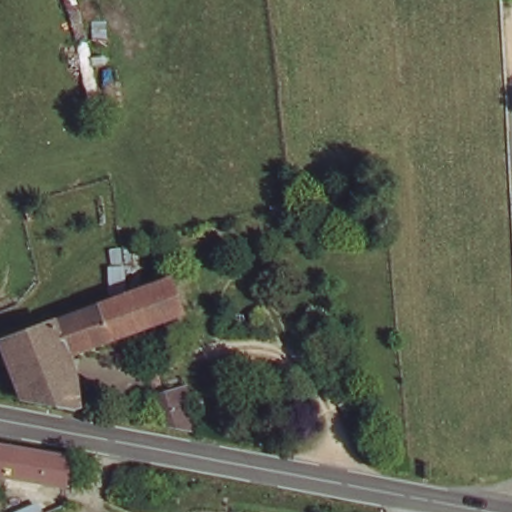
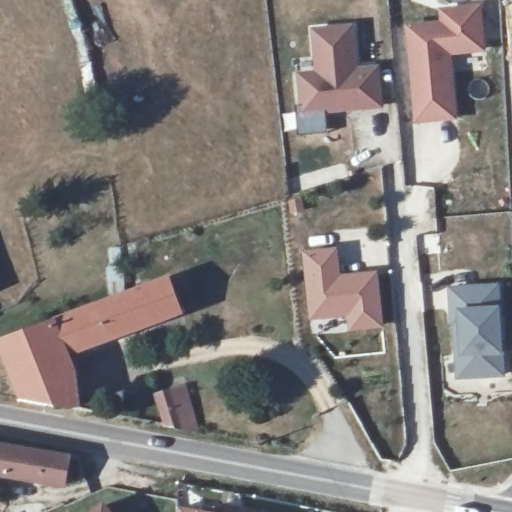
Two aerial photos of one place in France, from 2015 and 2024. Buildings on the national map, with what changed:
new [(441,22),(440,9),(482,6),(485,53),(452,56),(458,121),(415,126),(406,26),(441,22)]
new [(311,106),(307,68),(325,66),(320,24),(358,20),(362,63),(384,61),(387,98),(368,100),(349,101),(311,106)]
new [(345,162),(348,176),(301,191),(297,175),(345,162)]
new [(339,247),(342,274),(378,270),(384,328),(347,332),(345,319),(309,322),(301,250),(339,247)]
unchanged [(128,292),(176,275),(186,305),(139,322),(128,292)]
new [(501,284),(502,307),(505,353),(508,378),(456,382),(448,288),(501,284)]
unchanged [(74,344),(76,395),(20,384),(4,337),(128,292),(139,322),(74,344)]
unchanged [(190,425),(174,385),(186,380),(206,428),(190,425)]
unchanged [(75,457),(69,488),(0,476),(0,443),(75,457)]
unchanged [(110,496),(122,512),(88,512),(110,496)]
new [(217,512),(177,512),(177,506),(217,512)]

